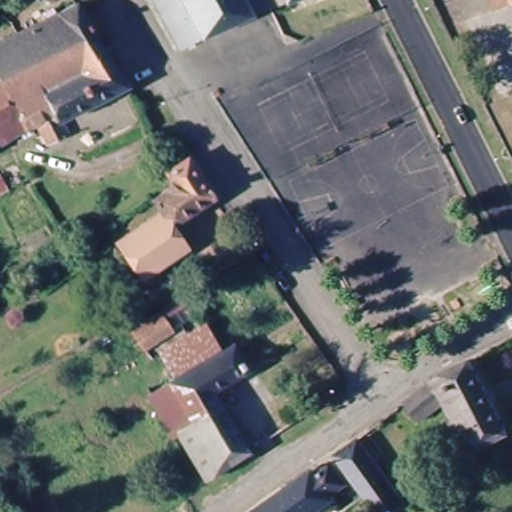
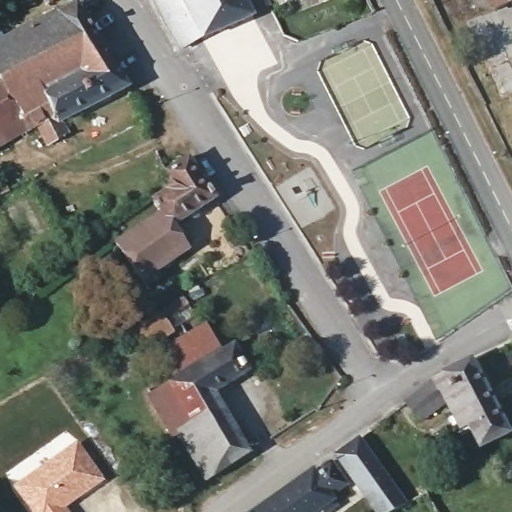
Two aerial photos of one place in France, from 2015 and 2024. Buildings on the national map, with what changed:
unchanged [(154,0),(179,0),(199,40),(180,50),(154,0)]
unchanged [(179,0),(240,0),(250,20),(199,40),(179,0)]
unchanged [(280,0),(299,0),(283,7),(280,0)]
unchanged [(492,0),(509,0),(495,6),(492,0)]
unchanged [(59,115),(65,130),(45,139),(35,121),(26,125),(0,79),(0,40),(73,4),(126,86),(59,115)]
unchanged [(0,139),(0,79),(26,125),(0,139)]
unchanged [(116,245),(158,215),(150,202),(175,185),(166,172),(169,168),(187,158),(215,201),(173,231),(193,260),(148,290),(116,245)]
unchanged [(25,180),(0,194),(0,174),(16,166),(25,180)]
unchanged [(165,318),(178,337),(204,325),(220,356),(181,380),(164,354),(145,366),(129,338),(165,318)]
unchanged [(183,434),(177,435),(153,397),(181,380),(220,356),(236,346),(247,363),(253,360),(258,370),(216,395),(254,453),(210,480),(183,434)]
unchanged [(449,392),(431,406),(434,411),(418,422),(403,404),(442,376),(470,363),(508,435),(482,450),(449,392)]
new [(105,480),(68,508),(70,512),(29,512),(11,487),(78,440),(105,480)]
unchanged [(378,473),(356,490),(331,456),(354,440),(378,473)]
unchanged [(331,512),(319,512),(253,512),(282,491),(308,471),(312,475),(327,464),(343,485),(346,488),(330,499),(333,502),(336,508),(331,512)]
unchanged [(392,512),(372,512),(356,490),(378,473),(402,507),(392,512)]

